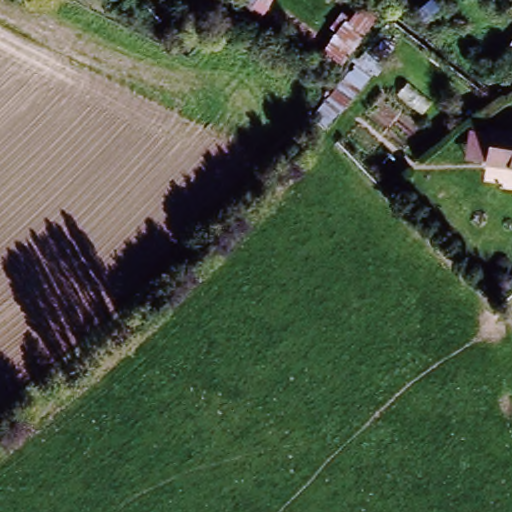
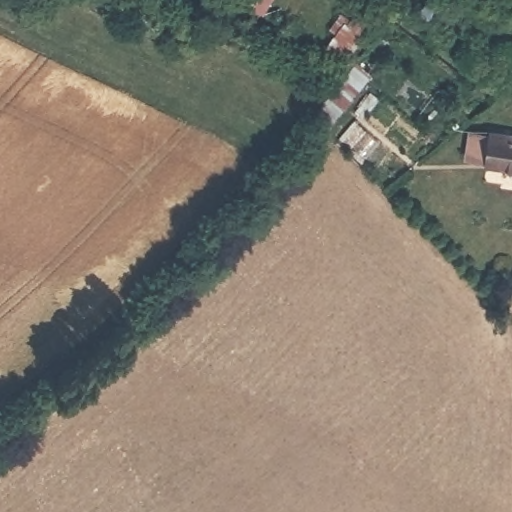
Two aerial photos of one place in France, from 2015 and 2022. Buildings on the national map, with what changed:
unchanged [(236,7),(241,0),(271,0),(257,21),(236,7)]
unchanged [(356,29),(333,62),(308,39),(330,9),(356,29)]
unchanged [(495,130),(505,133),(512,135),(512,167),(486,159),(495,130)]

